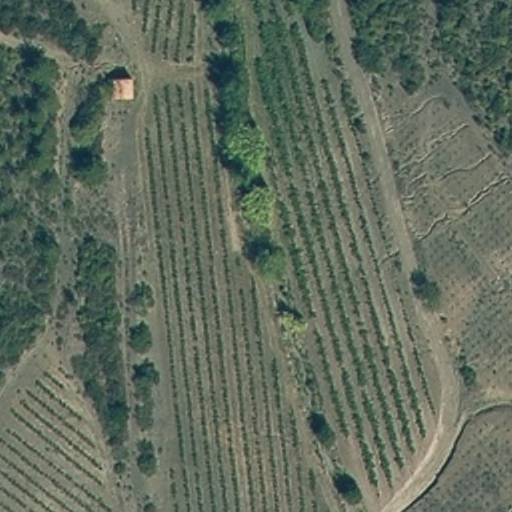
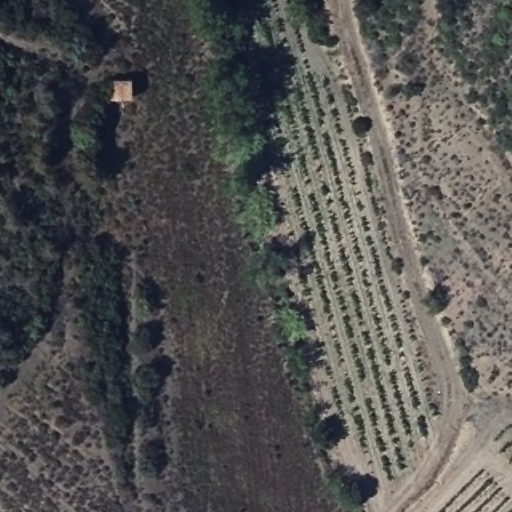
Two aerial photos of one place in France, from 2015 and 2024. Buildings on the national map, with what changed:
unchanged [(137,94),(112,94),(111,69),(136,72),(137,94)]

